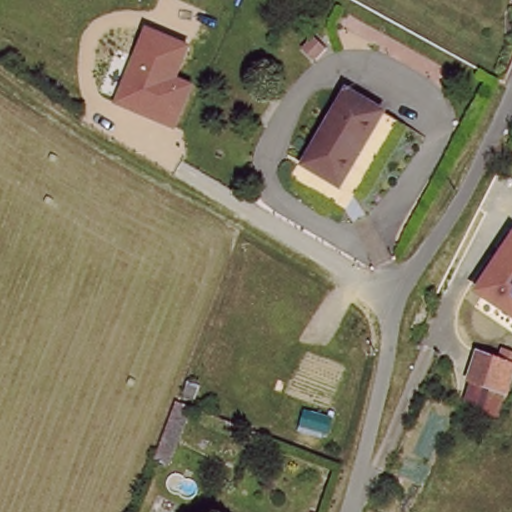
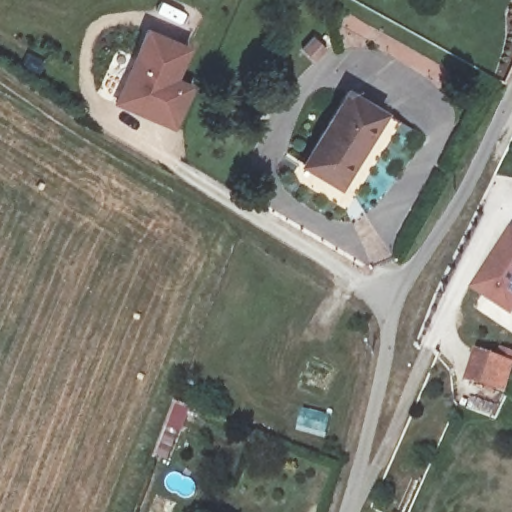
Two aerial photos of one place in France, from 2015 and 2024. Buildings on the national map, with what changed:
unchanged [(175,80),(191,86),(174,127),(117,104),(147,29),(189,47),(175,80)]
unchanged [(306,168),(350,95),(388,116),(343,190),(306,168)]
unchanged [(479,297),(512,242),(512,320),(479,297)]
unchanged [(489,407),(492,397),(470,388),(479,363),(497,368),(512,373),(512,400),(510,412),(489,407)]

